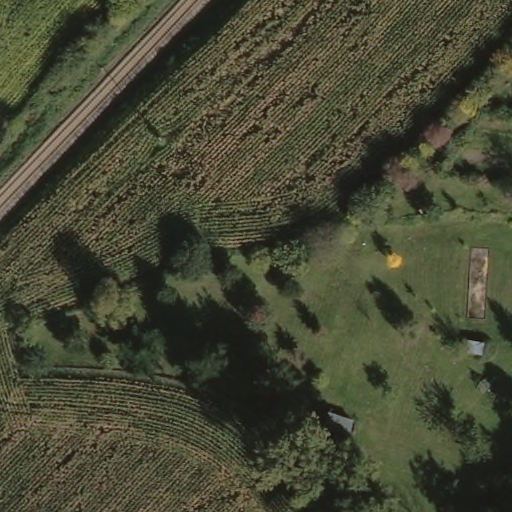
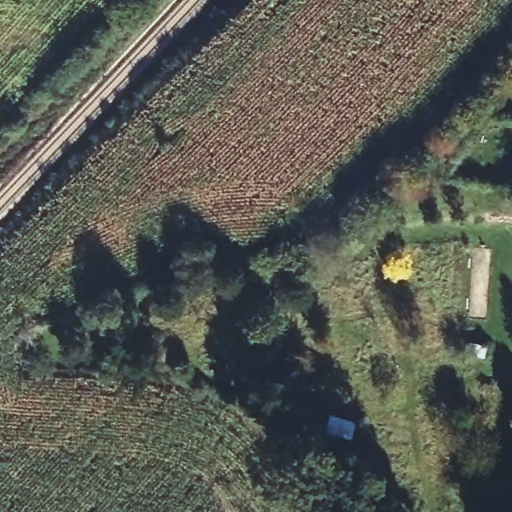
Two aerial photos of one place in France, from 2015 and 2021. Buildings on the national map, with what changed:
[]

